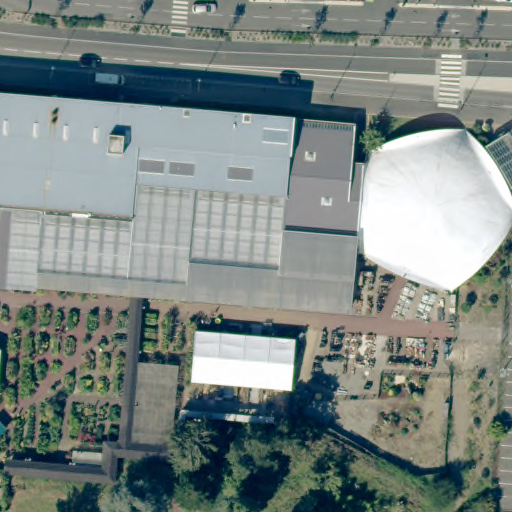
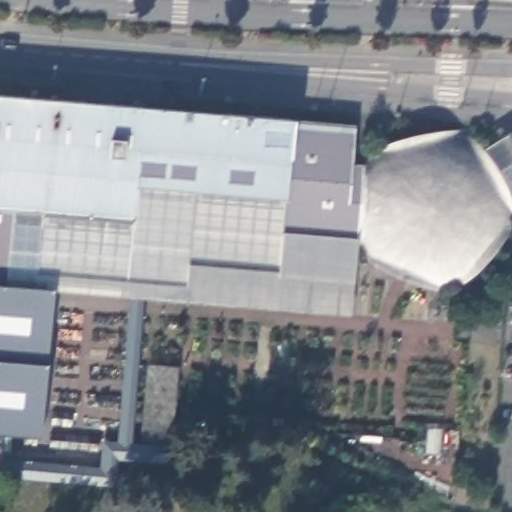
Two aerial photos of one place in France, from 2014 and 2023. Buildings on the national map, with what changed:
unchanged [(512,199),(511,216),(510,228),(504,246),(489,264),(469,282),(460,290),(454,293),(446,293),(442,294),(434,293),(419,287),(392,276),(375,267),(356,257),(354,288),(274,282),(273,310),(186,303),(186,295),(35,282),(36,295),(34,295),(0,291),(0,98),(295,122),(352,125),(350,169),(364,167),(366,163),(372,154),(378,149),(386,145),(398,141),(413,135),(421,132),(437,131),(449,130),(462,135),(473,141),(479,145),(486,151),(509,135),(512,139),(512,194),(512,199)]
unchanged [(350,317),(273,310),(274,282),(354,288),(350,317)]
new [(36,295),(52,296),(38,439),(0,436),(0,291),(8,292),(36,295)]
unchanged [(177,364),(168,445),(127,442),(138,361),(177,364)]

